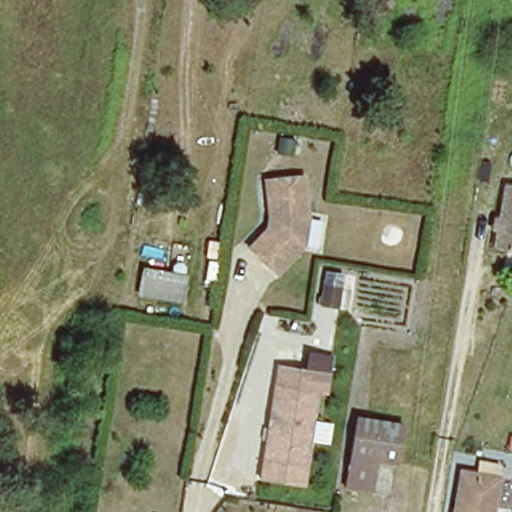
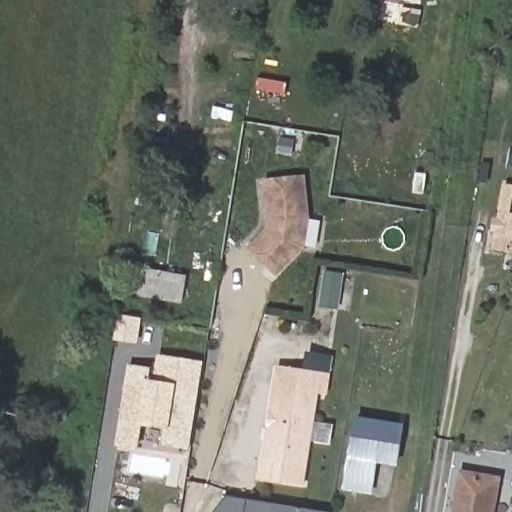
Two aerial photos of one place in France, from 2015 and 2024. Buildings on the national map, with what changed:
unchanged [(304,180),(308,222),(305,249),(277,278),(250,250),(268,232),(269,220),(265,184),(304,180)]
unchanged [(497,213),(503,214),(510,181),(512,182),(512,248),(497,245),(501,225),(496,224),(497,213)]
unchanged [(183,278),(179,300),(130,292),(134,270),(183,278)]
unchanged [(317,308),(321,275),(341,277),(337,308),(317,308)]
new [(142,315),(139,339),(117,336),(121,311),(142,315)]
new [(170,425),(126,417),(135,363),(154,366),(159,367),(157,376),(161,353),(195,359),(202,360),(200,379),(190,444),(168,441),(170,425)]
unchanged [(325,377),(321,396),(313,395),(298,490),(256,481),(265,429),(267,416),(272,387),(275,368),(325,377)]
unchanged [(342,480),(347,447),(354,408),(397,416),(390,455),(370,451),(365,483),(342,480)]
new [(126,417),(143,420),(139,444),(122,441),(126,417)]
unchanged [(488,512),(448,512),(457,463),(495,470),(488,512)]
new [(246,498),(330,512),(212,512),(225,495),(246,498)]

